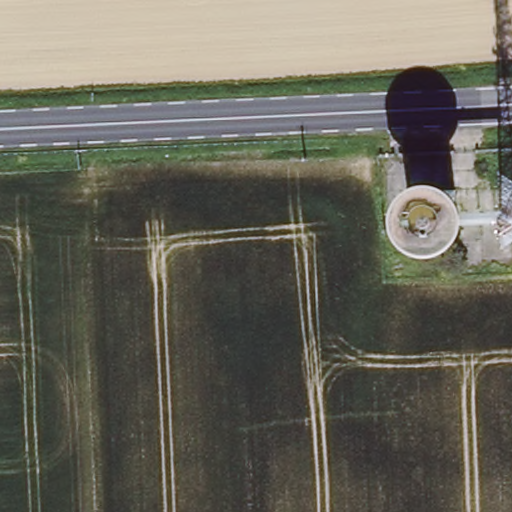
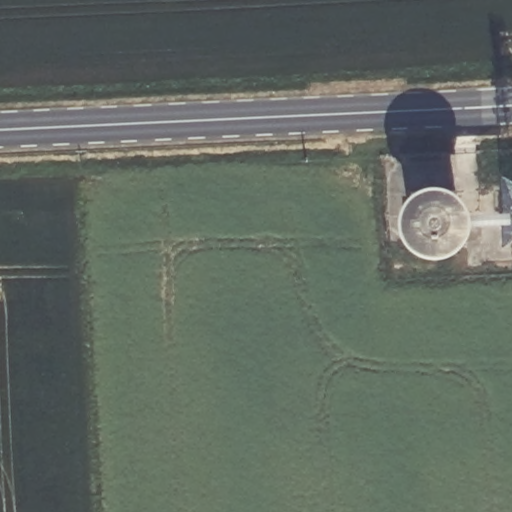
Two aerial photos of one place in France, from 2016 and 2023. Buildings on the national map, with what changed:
unchanged [(476,205),(466,230),(440,244),(414,232),(403,205),(412,180),(438,170),(465,177),(476,205)]

